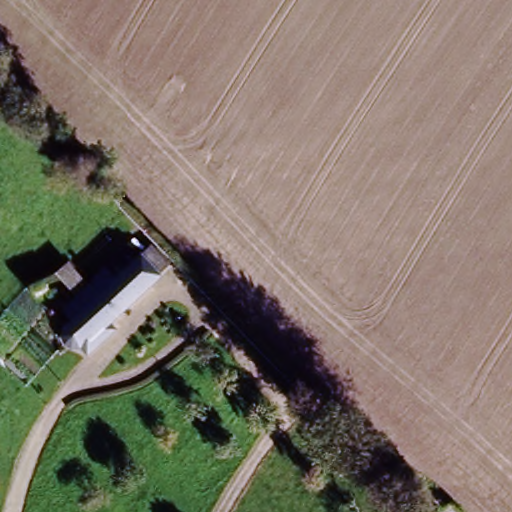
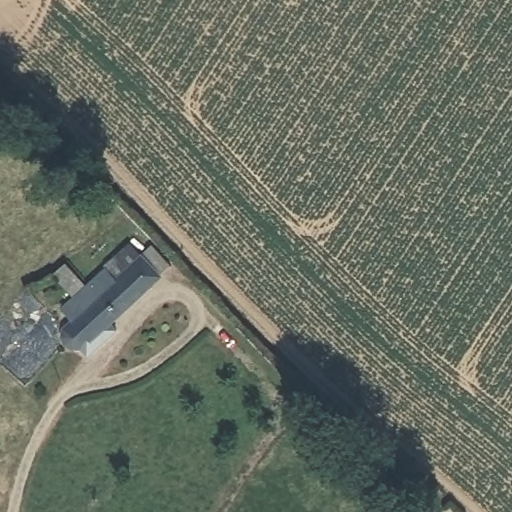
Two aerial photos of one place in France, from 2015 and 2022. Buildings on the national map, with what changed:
unchanged [(104,351),(95,344),(87,344),(82,341),(76,332),(77,324),(87,313),(79,303),(85,296),(60,270),(73,257),(99,283),(121,260),(130,271),(154,246),(172,266),(117,322),(124,330),(104,351)]
unchanged [(10,495),(0,507),(0,488),(10,495)]

